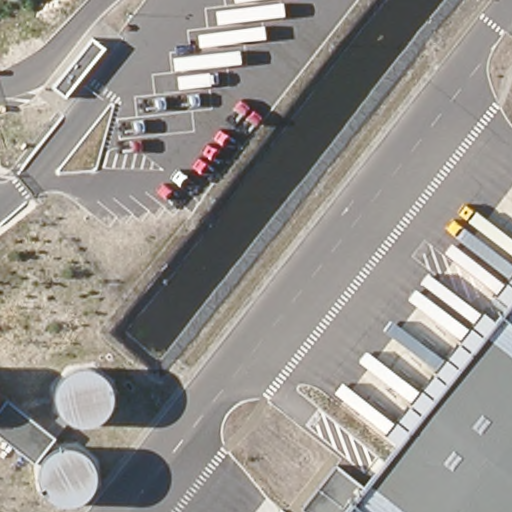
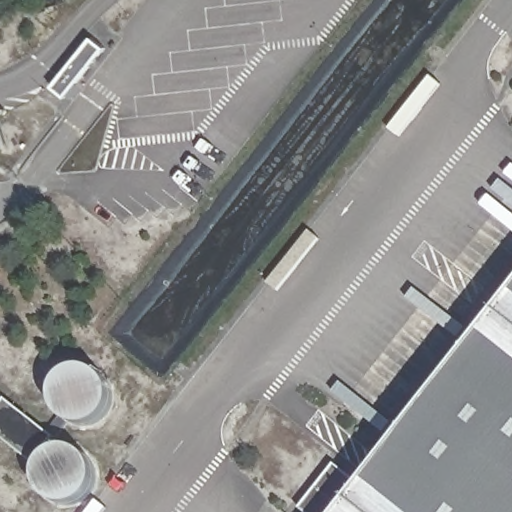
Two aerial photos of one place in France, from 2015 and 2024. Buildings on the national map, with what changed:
unchanged [(64,98),(52,88),(92,38),(105,48),(64,98)]
unchanged [(512,300),(512,512),(344,512),(364,487),(512,300)]
unchanged [(7,399),(56,438),(35,465),(0,436),(0,408),(7,399)]
unchanged [(344,512),(306,512),(302,509),(337,465),(364,487),(344,512)]

